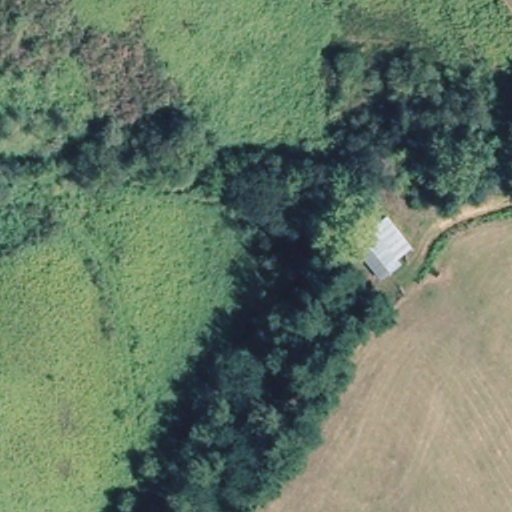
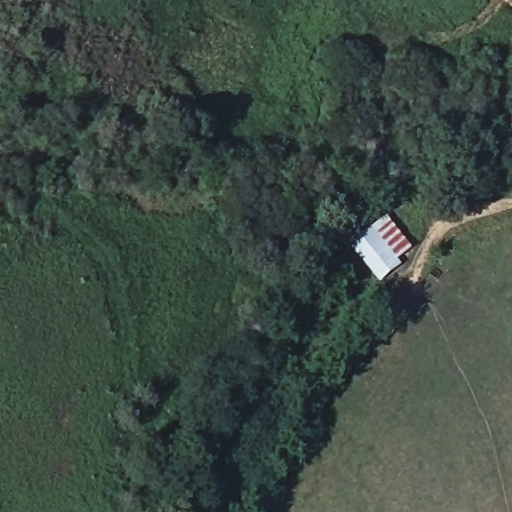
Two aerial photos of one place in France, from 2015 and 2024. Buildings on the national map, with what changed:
unchanged [(380,283),(355,246),(375,231),(391,220),(415,251),(400,264),(403,269),(380,283)]

